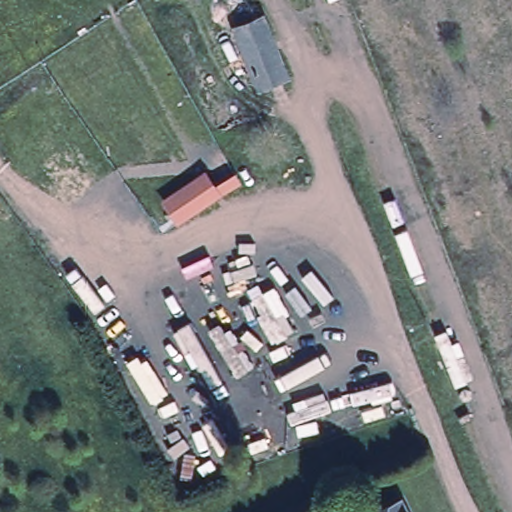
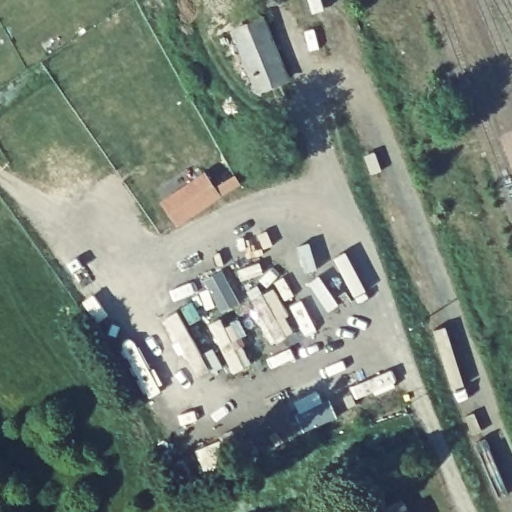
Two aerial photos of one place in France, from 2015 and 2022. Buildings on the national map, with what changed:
unchanged [(261,20),(286,79),(257,92),(232,32),(261,20)]
unchanged [(221,197),(179,226),(164,205),(206,176),(221,197)]
unchanged [(403,512),(376,512),(399,502),(403,512)]

